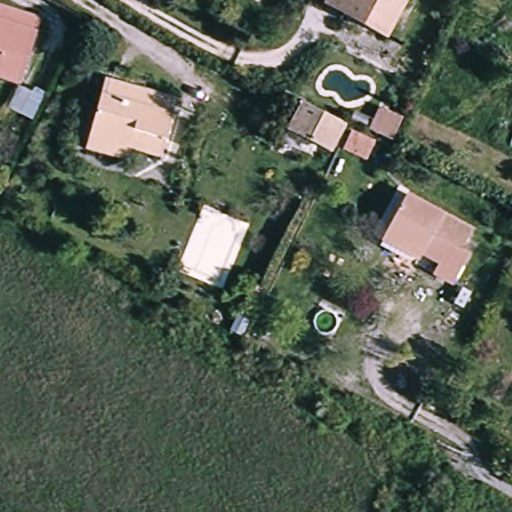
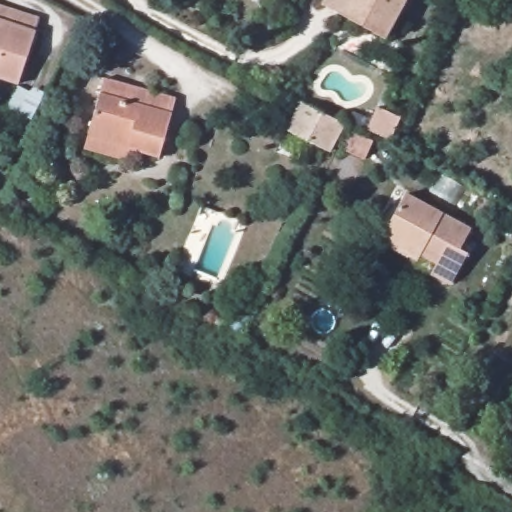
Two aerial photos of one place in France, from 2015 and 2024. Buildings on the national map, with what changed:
unchanged [(320,0),(403,0),(382,38),(362,27),(317,6),(320,0)]
unchanged [(34,19),(12,88),(0,84),(0,8),(34,19)]
unchanged [(80,154),(83,140),(97,82),(171,100),(157,157),(124,149),(121,163),(80,154)]
unchanged [(284,134),(299,103),(314,111),(344,126),(333,147),(327,157),(284,134)]
unchanged [(402,118),(392,140),(369,131),(381,109),(402,118)]
unchanged [(343,153),(351,132),(376,143),(369,162),(343,153)]
unchanged [(373,247),(381,232),(400,196),(468,230),(455,254),(460,258),(445,287),(425,277),(431,266),(414,257),(409,266),(373,247)]

